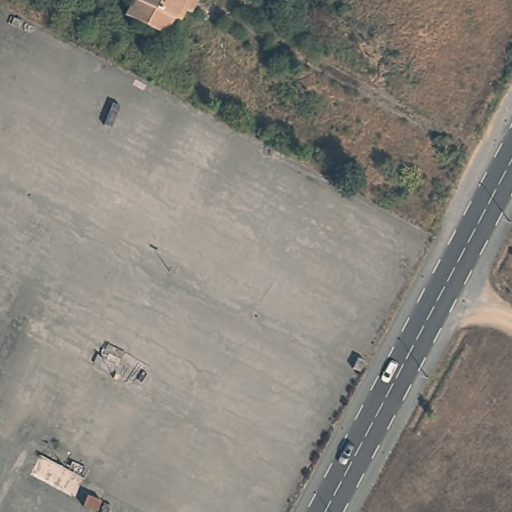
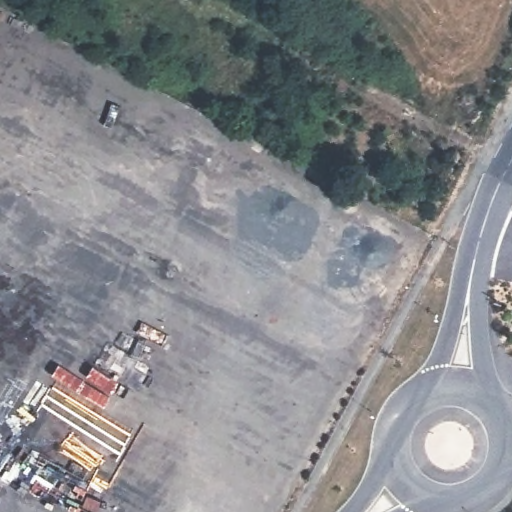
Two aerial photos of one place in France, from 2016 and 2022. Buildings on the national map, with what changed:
demolished [(121,16),(129,0),(193,0),(185,15),(180,11),(175,9),(169,20),(160,38),(121,16)]
unchanged [(175,9),(180,11),(175,22),(169,20),(175,9)]

